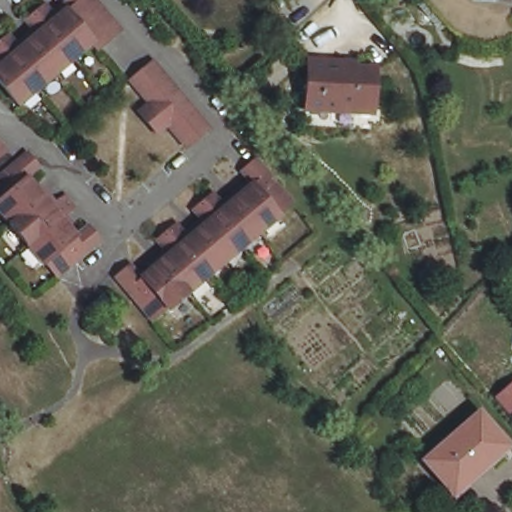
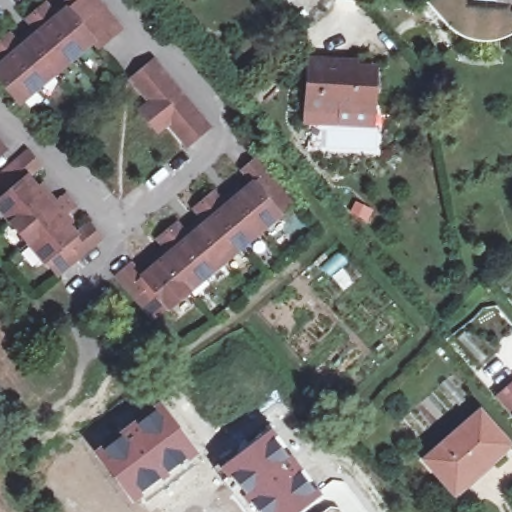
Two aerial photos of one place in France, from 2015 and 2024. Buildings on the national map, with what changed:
unchanged [(0,76),(0,67),(5,64),(0,58),(0,44),(13,33),(25,47),(40,34),(29,20),(50,2),(61,16),(69,10),(64,4),(69,0),(101,0),(125,29),(102,49),(96,42),(22,104),(0,76)]
unchanged [(504,41),(458,30),(431,0),(483,0),(482,0),(505,2),(505,0),(512,0),(512,37),(504,41)]
unchanged [(340,114),(307,111),(311,60),(342,62),(357,64),(357,68),(378,70),(376,106),(375,115),(340,114)]
unchanged [(153,109),(133,85),(157,65),(213,132),(190,152),(170,129),(160,137),(143,116),(153,109)]
unchanged [(0,142),(10,155),(0,163),(0,142)]
unchanged [(105,245),(61,281),(48,267),(47,268),(0,211),(0,182),(31,156),(45,171),(31,182),(55,211),(70,199),(79,210),(65,222),(79,239),(92,229),(105,245)]
unchanged [(113,276),(130,263),(140,276),(167,254),(155,240),(175,222),(187,236),(203,223),(191,209),(212,192),(224,206),(250,184),(240,171),(255,158),(292,202),(277,215),(278,216),(167,309),(166,308),(151,320),(113,276)]
unchanged [(92,315),(85,306),(102,292),(110,301),(92,315)]
new [(512,385),(512,420),(495,400),(512,385)]
new [(118,435),(117,432),(159,402),(195,455),(131,502),(93,452),(118,435)]
unchanged [(472,478),(466,472),(448,489),(424,462),(480,413),(509,445),(472,478)]
new [(272,427),(324,495),(301,512),(248,512),(216,469),(272,427)]
new [(321,509),(323,512),(317,512),(321,509)]

